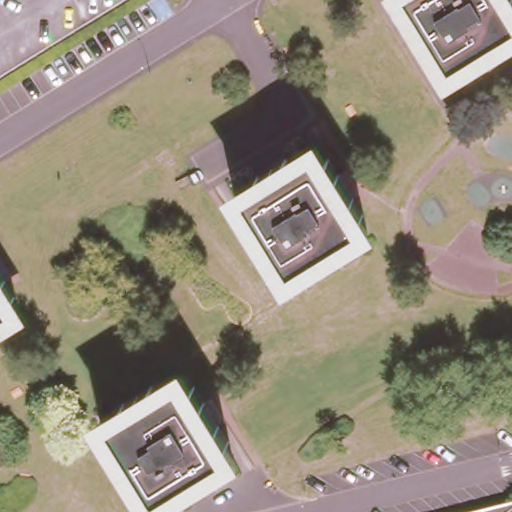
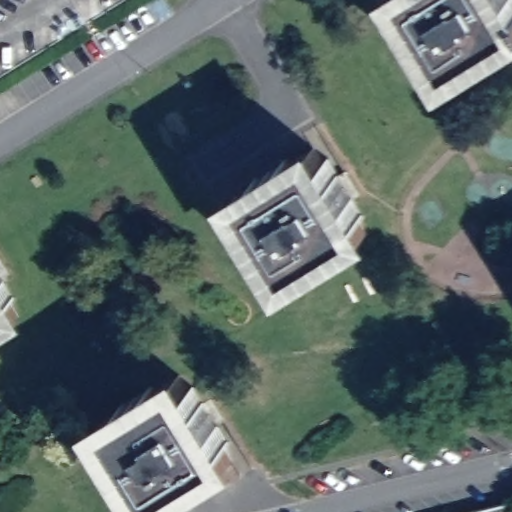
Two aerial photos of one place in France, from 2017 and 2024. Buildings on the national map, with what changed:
unchanged [(0,77),(0,0),(125,0),(0,77)]
unchanged [(512,35),(506,39),(509,43),(479,61),(476,57),(450,73),(442,59),(436,63),(400,7),(407,3),(404,0),(512,0),(512,35)]
unchanged [(235,191),(260,176),(258,172),(288,153),(290,157),(316,140),(326,155),(331,152),(367,208),(362,211),(371,226),(344,242),(347,247),(316,266),(314,261),(289,276),(280,263),(274,266),(238,210),(244,206),(235,191)]
unchanged [(14,292),(10,295),(19,312),(0,324),(0,270),(14,292)]
unchanged [(100,415),(127,400),(124,395),(154,376),(156,381),(181,365),(191,382),(196,379),(231,436),(226,438),(234,452),(210,467),(213,473),(184,491),(181,486),(153,502),(146,489),(139,493),(105,436),(111,432),(100,415)]
unchanged [(512,512),(429,512),(512,492),(512,512)]

